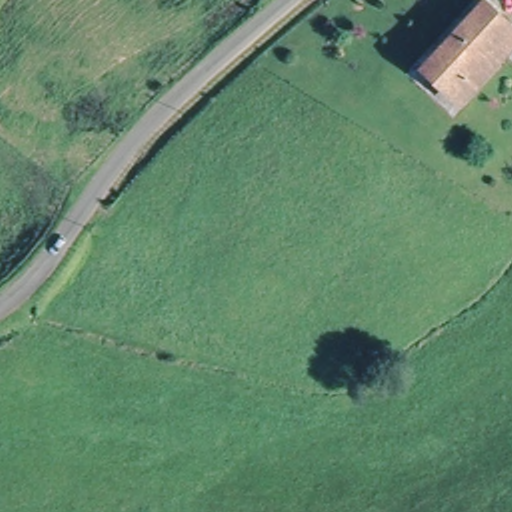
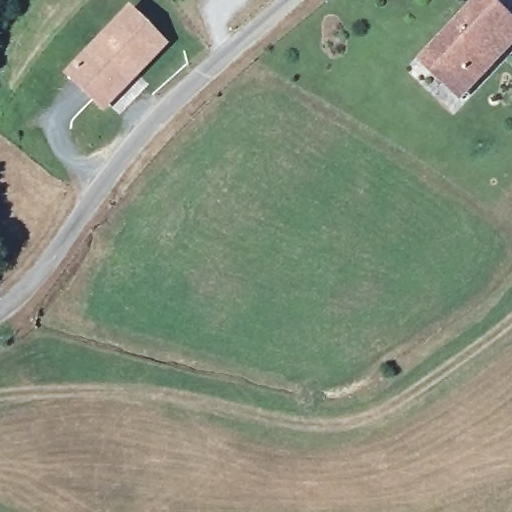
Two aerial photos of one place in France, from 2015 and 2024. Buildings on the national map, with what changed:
unchanged [(478,2),(512,32),(512,43),(458,101),(439,84),(420,65),(425,59),(478,2)]
new [(62,77),(128,7),(168,44),(103,115),(62,77)]

